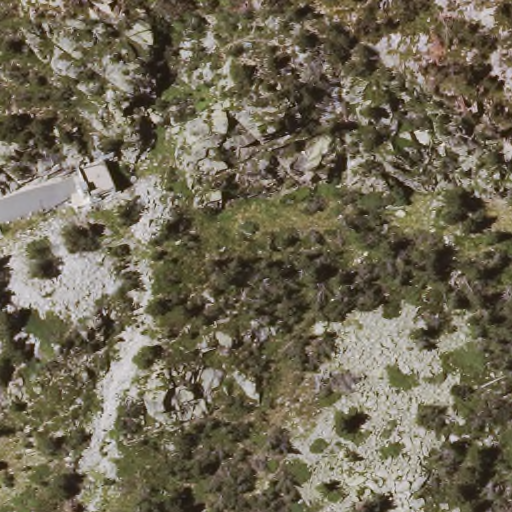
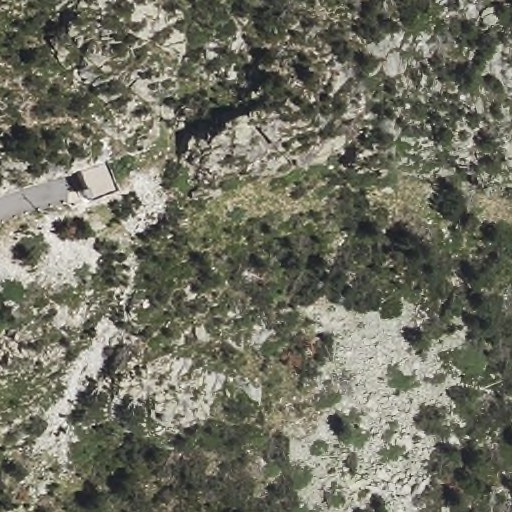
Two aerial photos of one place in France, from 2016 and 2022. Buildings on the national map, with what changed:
unchanged [(75,190),(83,186),(77,170),(103,160),(115,192),(98,199),(84,204),(75,190)]

